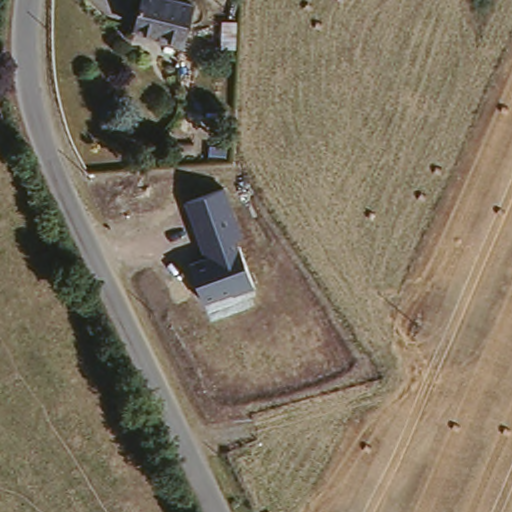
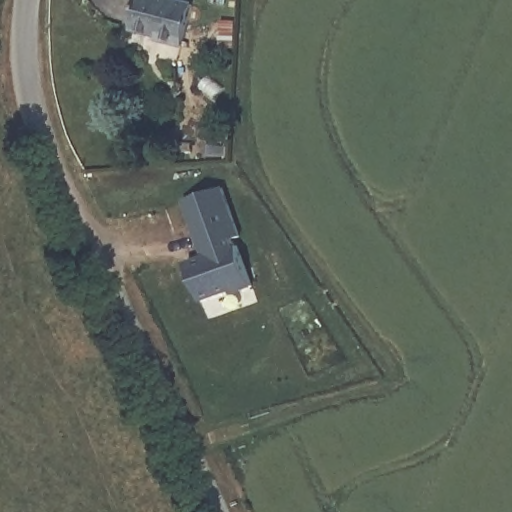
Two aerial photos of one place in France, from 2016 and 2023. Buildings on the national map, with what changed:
unchanged [(136,22),(142,0),(195,0),(184,38),(161,33),(161,29),(136,22)]
unchanged [(225,189),(241,237),(236,238),(252,287),(202,303),(191,262),(204,257),(189,201),(225,189)]

